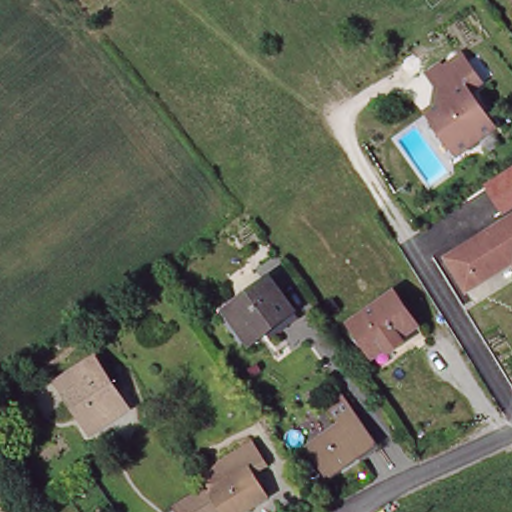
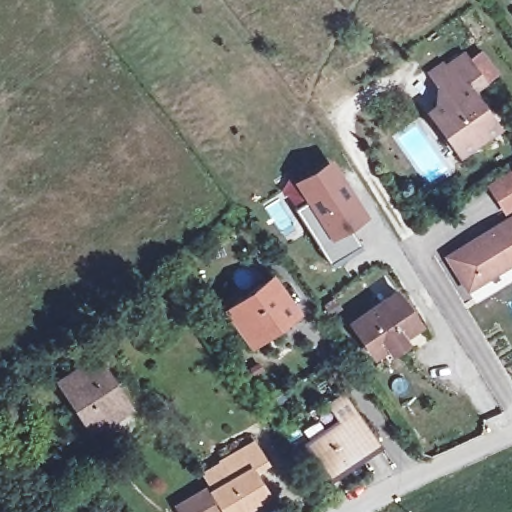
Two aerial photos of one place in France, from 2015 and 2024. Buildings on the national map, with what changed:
unchanged [(466,54),(477,70),(485,82),(473,91),(499,128),(463,154),(432,110),(441,104),(443,92),(443,89),(434,76),(466,54)]
new [(330,160),(363,212),(348,222),(360,241),(329,261),(294,205),(309,196),(299,181),(330,160)]
new [(486,183),(512,167),(512,208),(504,213),(486,183)]
unchanged [(449,258),(512,218),(512,263),(481,283),(469,290),(463,281),(449,258)]
unchanged [(253,339),(231,310),(277,276),(289,291),(284,294),(294,308),(253,339)]
unchanged [(404,348),(391,357),(387,351),(373,360),(351,328),(388,301),(396,296),(419,329),(410,334),(400,341),(404,348)]
new [(334,299),(341,308),(331,315),(324,305),(334,299)]
unchanged [(118,415),(93,431),(59,381),(97,356),(125,397),(131,405),(118,415)]
unchanged [(344,387),(381,439),(330,475),(306,441),(339,418),(327,399),(344,387)]
unchanged [(199,472),(218,461),(218,458),(249,440),(264,465),(250,473),(264,496),(239,512),(222,512),(216,504),(199,472)]
unchanged [(202,488),(217,512),(181,512),(176,504),(202,488)]

